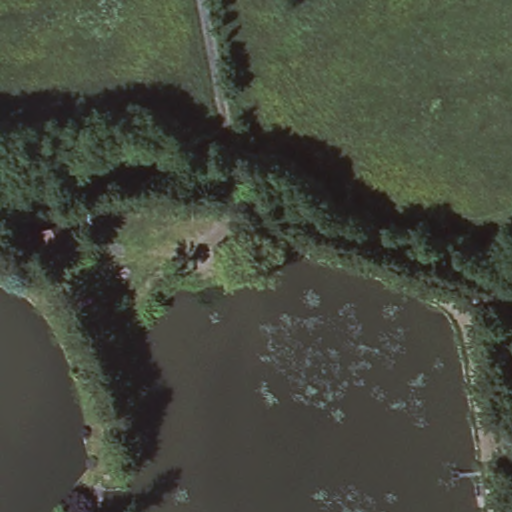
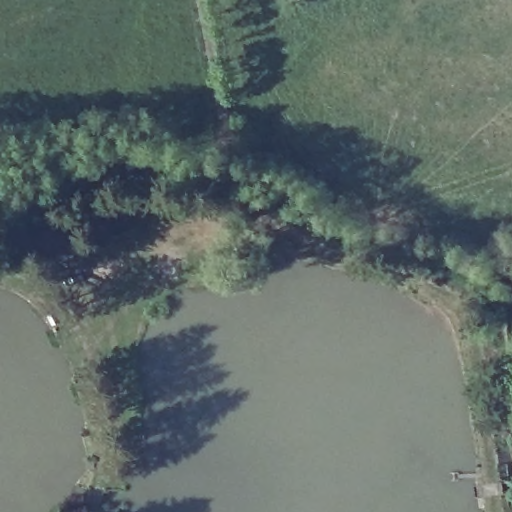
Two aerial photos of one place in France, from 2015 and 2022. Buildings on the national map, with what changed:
unchanged [(62,228),(75,222),(85,243),(68,250),(50,256),(38,231),(60,223),(62,228)]

